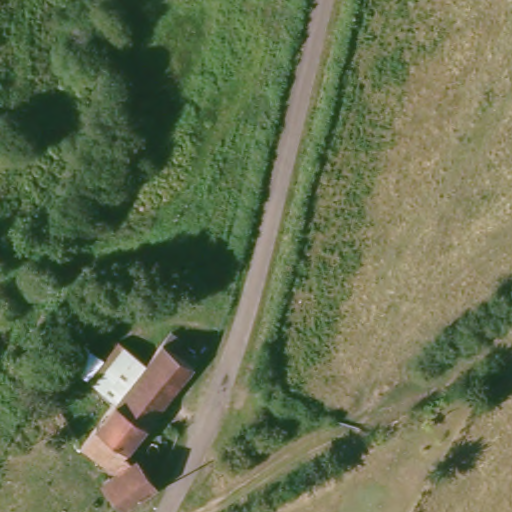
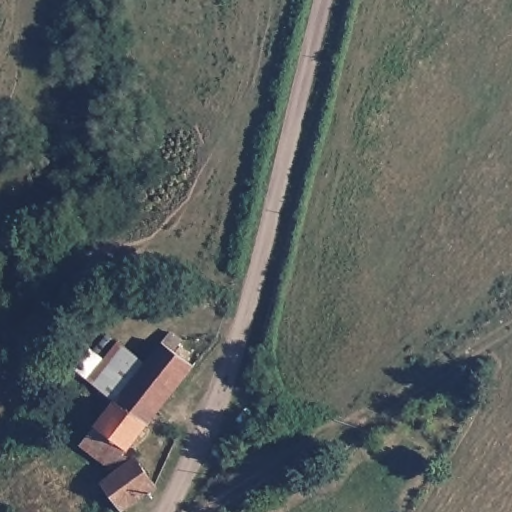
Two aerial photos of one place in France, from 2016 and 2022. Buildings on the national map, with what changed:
unchanged [(110,413),(125,393),(101,371),(122,344),(148,365),(164,344),(193,368),(112,470),(84,446),(110,413)]
unchanged [(106,481),(137,458),(157,485),(124,508),(106,481)]

